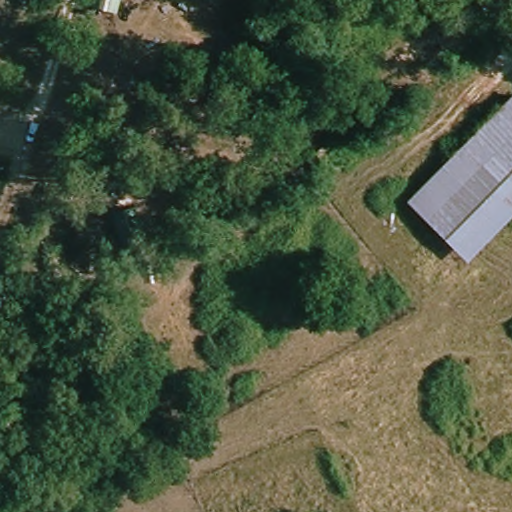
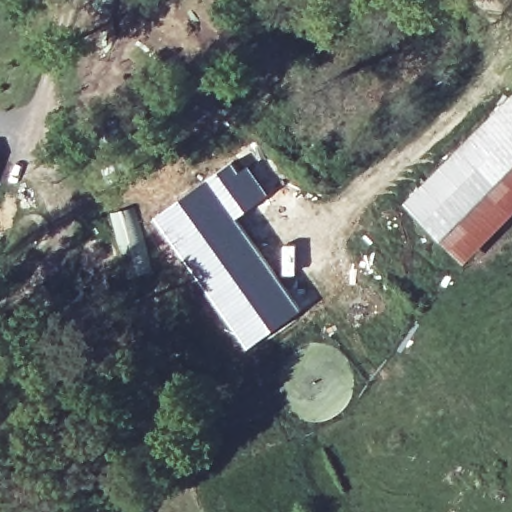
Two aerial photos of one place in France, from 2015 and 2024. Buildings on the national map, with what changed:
unchanged [(512,222),(469,265),(410,204),(512,100),(512,222)]
unchanged [(319,179),(305,159),(319,146),(337,166),(319,179)]
new [(233,162),(240,171),(250,164),(263,183),(230,206),(302,307),(250,345),(157,216),(209,179),(233,162)]
unchanged [(140,459),(128,432),(146,424),(160,446),(140,459)]

